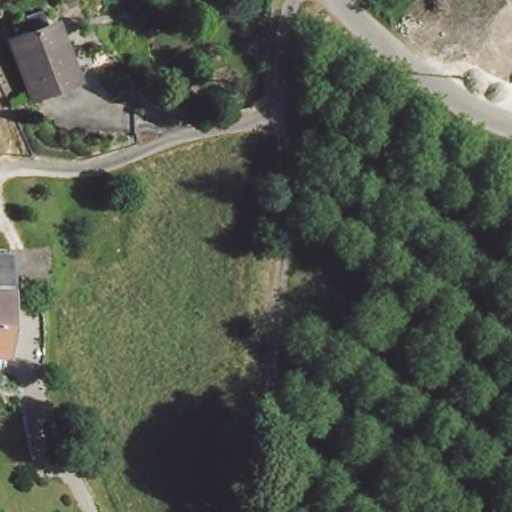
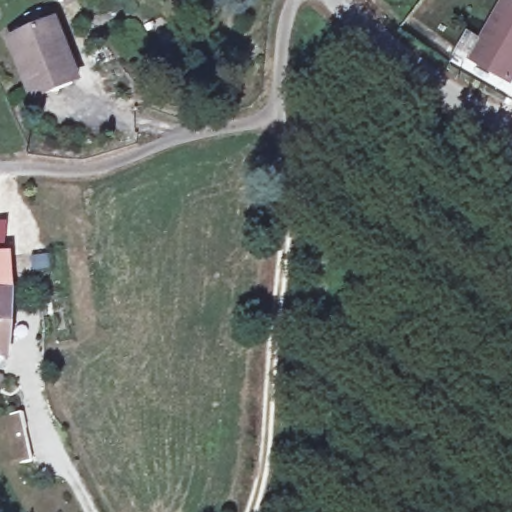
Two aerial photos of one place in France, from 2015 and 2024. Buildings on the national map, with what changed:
new [(501,0),(512,0),(512,82),(467,57),(501,0)]
unchanged [(59,20),(85,76),(42,95),(18,41),(16,38),(59,20)]
unchanged [(11,246),(23,246),(33,246),(29,288),(5,292),(3,293),(11,246)]
unchanged [(5,292),(29,288),(27,309),(26,316),(18,351),(17,368),(0,368),(0,293),(3,293),(5,292)]

